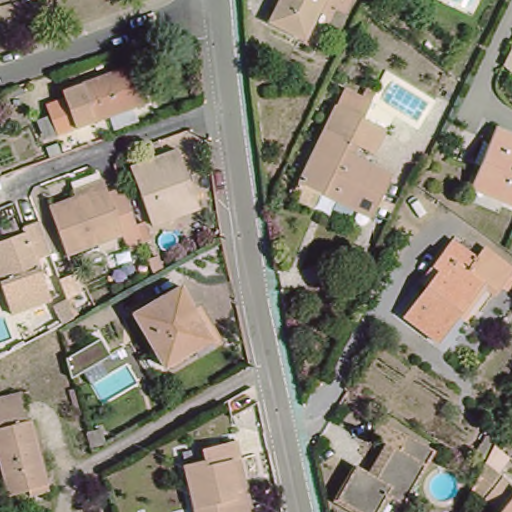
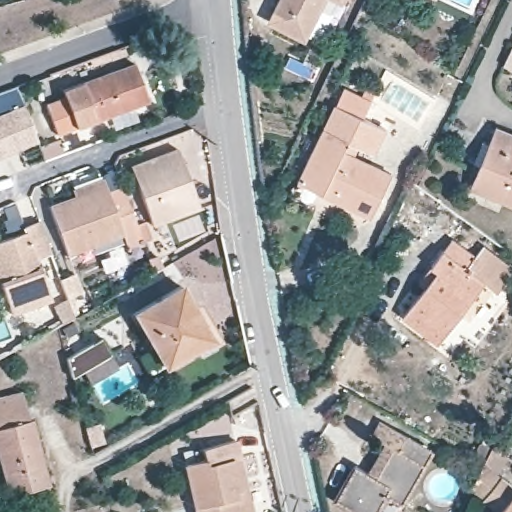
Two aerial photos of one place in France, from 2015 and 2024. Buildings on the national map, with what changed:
unchanged [(283,0),(330,0),(310,41),(272,22),(283,0)]
unchanged [(339,0),(345,0),(344,2),(339,0)]
unchanged [(153,101),(63,135),(50,104),(70,97),(68,91),(141,64),(153,101)]
unchanged [(370,219),(299,182),(343,89),(371,102),(362,121),(385,132),(374,154),(360,147),(353,158),(390,176),(370,219)]
new [(23,105),(38,142),(0,158),(0,114),(23,105)]
unchanged [(492,124),(512,132),(512,203),(468,185),(492,124)]
unchanged [(170,214),(152,221),(129,164),(177,146),(195,195),(199,205),(170,214)]
unchanged [(122,237),(67,257),(48,209),(73,200),(70,192),(102,180),(105,187),(107,195),(122,189),(140,237),(143,245),(128,251),(125,242),(122,237)]
unchanged [(2,282),(0,282),(0,247),(31,236),(28,229),(44,223),(56,257),(41,263),(55,304),(16,318),(2,282)]
unchanged [(459,316),(437,343),(404,317),(422,292),(417,287),(431,268),(453,240),(477,258),(485,247),(512,268),(512,273),(511,275),(512,275),(512,285),(507,291),(501,287),(497,292),(491,297),(486,292),(464,321),(459,316)]
unchanged [(81,292),(66,298),(63,289),(60,281),(75,275),(81,292)]
unchanged [(220,338),(195,353),(190,345),(159,363),(127,309),(176,281),(188,303),(196,299),(220,338)]
unchanged [(102,338),(111,356),(72,377),(67,357),(102,338)]
unchanged [(21,392),(28,420),(31,421),(49,484),(8,496),(0,463),(0,398),(21,392)]
unchanged [(382,416),(403,427),(399,435),(430,453),(401,502),(384,492),(373,512),(367,512),(337,496),(357,461),(366,467),(383,438),(373,432),(382,416)]
unchanged [(500,507),(472,485),(481,467),(457,452),(466,435),(477,442),(487,430),(497,435),(493,443),(508,455),(495,471),(512,483),(512,512),(496,512),(500,507)]
unchanged [(188,462),(207,456),(205,443),(241,435),(245,455),(242,456),(256,512),(200,512),(188,462)]

